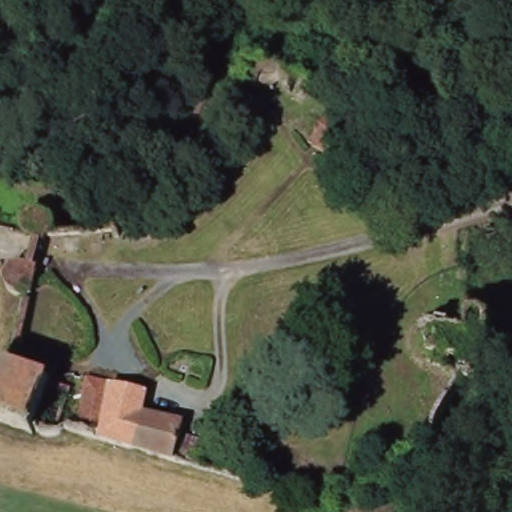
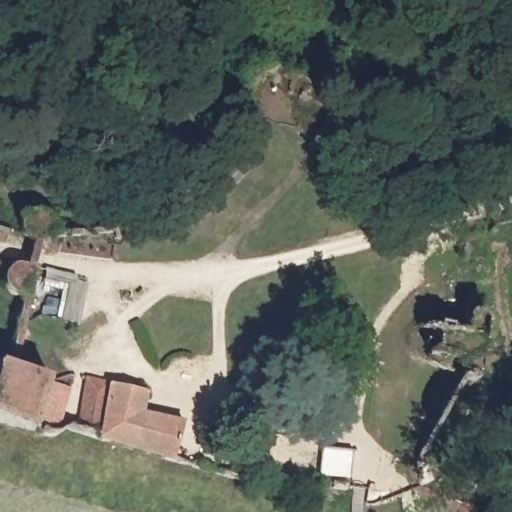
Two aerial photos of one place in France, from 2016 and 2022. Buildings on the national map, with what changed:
unchanged [(330,110),(358,127),(336,162),(307,144),(330,110)]
unchanged [(29,239),(24,235),(22,230),(22,224),(22,220),(25,216),(28,213),(33,210),(38,209),(43,212),(48,214),(51,218),(52,222),(52,226),(51,231),(44,244),(29,239)]
unchanged [(20,363),(55,377),(56,378),(74,384),(59,433),(47,432),(39,428),(37,433),(0,421),(0,355),(0,353),(10,357),(25,291),(17,288),(12,285),(10,281),(9,276),(10,271),(11,267),(13,264),(18,261),(23,260),(28,259),(33,262),(35,260),(42,261),(38,289),(23,350),(20,363)]
unchanged [(38,289),(60,295),(46,355),(23,350),(38,289)]
unchanged [(86,373),(116,381),(146,386),(141,409),(185,418),(174,457),(73,430),(86,373)]

